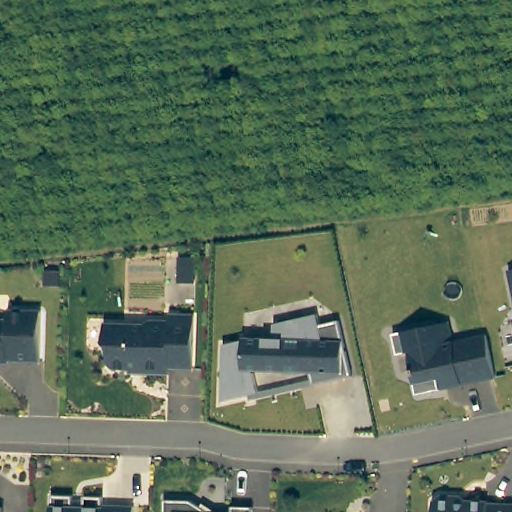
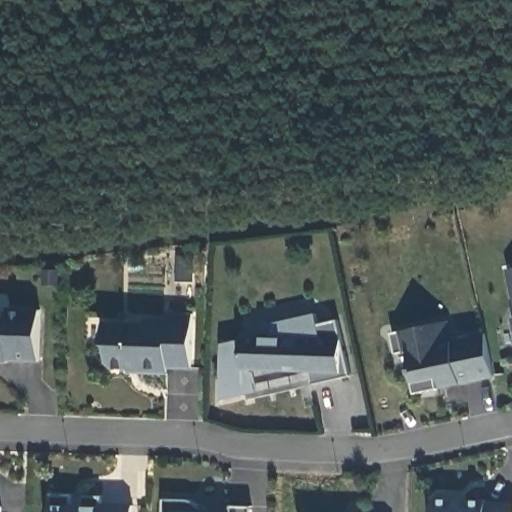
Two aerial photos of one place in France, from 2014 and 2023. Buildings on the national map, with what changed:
unchanged [(506,270),(512,269),(512,295),(506,270)]
unchanged [(2,308),(34,309),(33,361),(0,360),(0,318),(2,318),(2,308)]
unchanged [(136,323),(141,318),(162,319),(162,312),(187,313),(186,368),(162,367),(162,373),(131,372),(131,366),(124,366),(124,368),(106,368),(101,363),(102,346),(97,341),(98,322),(136,323)]
unchanged [(311,371),(255,370),(258,391),(221,399),(223,344),(244,337),(272,337),(271,324),(315,314),(319,326),(337,321),(351,374),(314,383),(311,371)]
unchanged [(411,392),(402,350),(390,353),(386,332),(425,323),(442,320),(446,339),(478,332),(479,332),(489,375),(487,376),(454,383),(436,387),(411,392)]
unchanged [(70,490),(69,501),(80,501),(80,490),(99,491),(100,499),(131,500),(131,512),(48,512),(48,489),(70,490)]
unchanged [(433,493),(447,493),(451,498),(481,499),(481,501),(512,502),(512,512),(427,512),(427,498),(433,493)]
unchanged [(184,499),(206,512),(157,512),(157,498),(184,499)]
unchanged [(226,512),(225,504),(246,505),(246,512),(226,512)]

